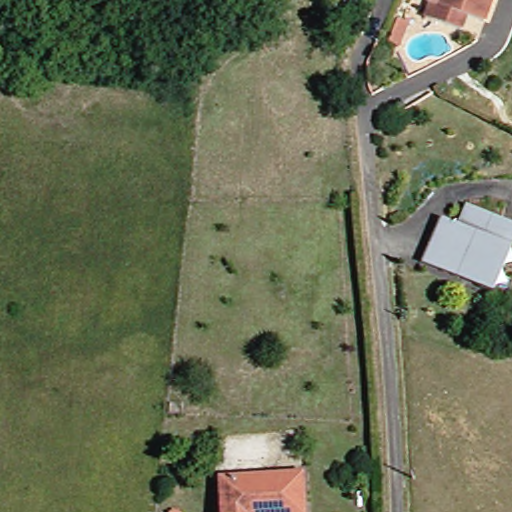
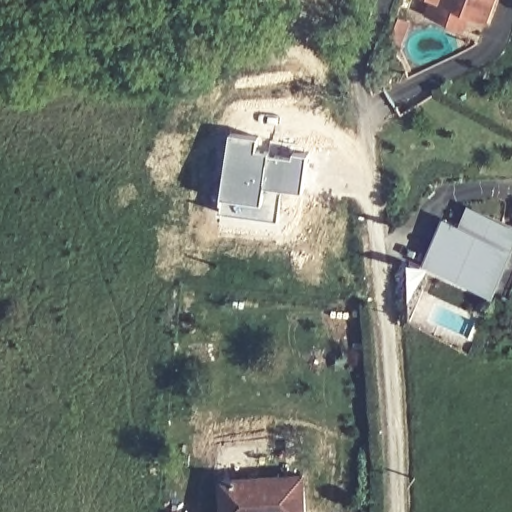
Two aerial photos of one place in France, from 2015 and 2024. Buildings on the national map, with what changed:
unchanged [(463,29),(425,18),(429,2),(423,0),(501,0),(494,21),(481,16),(476,33),(463,29)]
new [(258,147),(272,148),(271,152),(295,154),(295,148),(310,149),(306,187),(287,184),(282,217),(223,211),(226,194),(232,131),(260,135),(258,147)]
unchanged [(448,217),(463,224),(472,204),(512,223),(512,259),(494,293),(426,259),(448,217)]
unchanged [(232,476),(304,472),(306,512),(225,512),(223,478),(232,476)]

